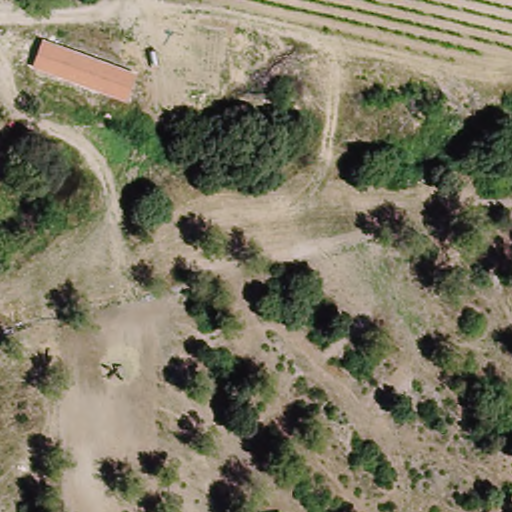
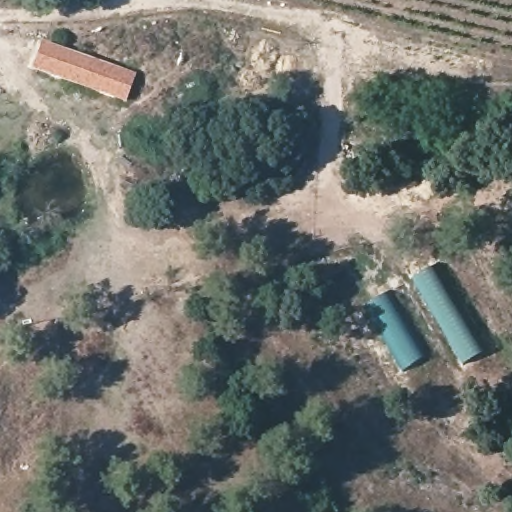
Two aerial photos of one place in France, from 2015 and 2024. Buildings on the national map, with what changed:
unchanged [(137,76),(128,98),(35,65),(44,41),(137,76)]
new [(464,363),(413,279),(433,267),(484,351),(464,363)]
new [(404,370),(366,305),(389,291),(428,355),(404,370)]

